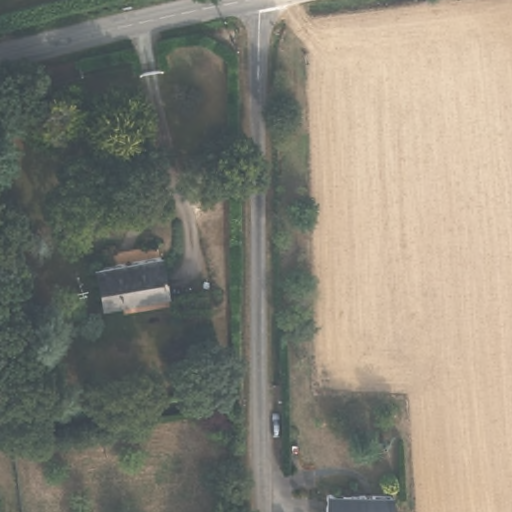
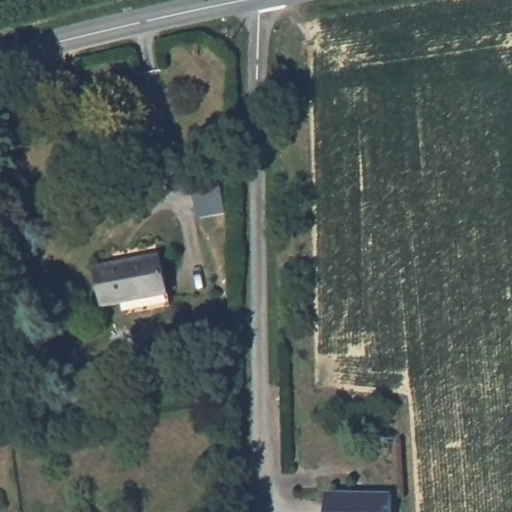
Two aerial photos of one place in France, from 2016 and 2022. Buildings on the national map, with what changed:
unchanged [(156,253),(164,293),(99,305),(91,265),(156,253)]
unchanged [(390,489),(391,512),(328,512),(328,490),(390,489)]

